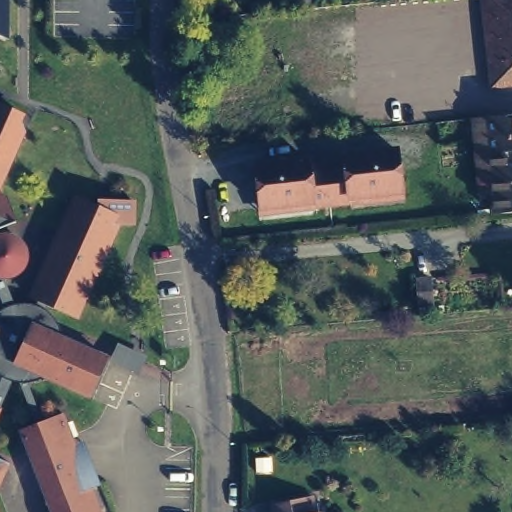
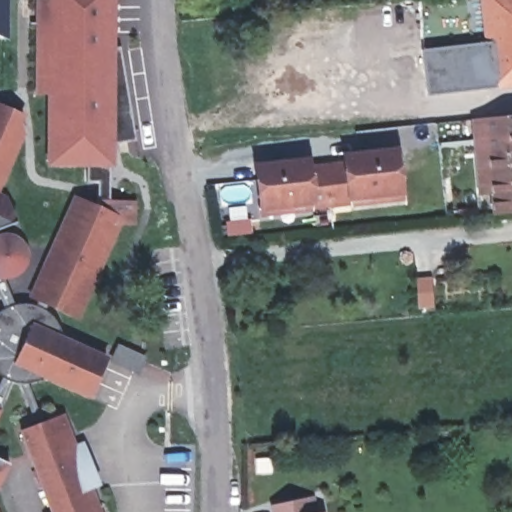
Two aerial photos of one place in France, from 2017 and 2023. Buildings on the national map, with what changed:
unchanged [(0,36),(0,0),(4,0),(3,38),(0,36)]
new [(115,168),(108,169),(110,202),(97,202),(97,180),(90,179),(88,166),(48,165),(47,94),(38,94),(35,0),(115,0),(115,49),(121,48),(136,138),(114,141),(115,168)]
unchanged [(481,92),(425,91),(421,47),(475,40),(470,0),(512,0),(512,88),(481,92)]
unchanged [(24,125),(27,133),(1,195),(7,192),(18,221),(0,228),(0,104),(27,115),(24,125)]
unchanged [(485,215),(483,195),(473,195),(467,119),(477,118),(512,115),(512,212),(485,215)]
unchanged [(315,157),(317,166),(347,162),(346,154),(405,147),(408,199),(262,216),(260,163),(315,157)]
unchanged [(92,202),(137,202),(138,225),(121,225),(81,320),(32,299),(77,196),(92,202)]
unchanged [(22,242),(28,251),(30,263),(25,272),(17,279),(5,281),(0,279),(0,236),(1,236),(12,237),(22,242)]
unchanged [(418,307),(415,280),(429,279),(431,306),(418,307)]
unchanged [(44,377),(33,382),(17,383),(4,379),(0,375),(0,314),(10,308),(24,304),(40,307),(51,315),(60,325),(63,335),(111,357),(94,398),(44,377)]
new [(118,343),(148,355),(140,375),(110,362),(118,343)]
unchanged [(0,418),(0,406),(3,410),(0,418)]
unchanged [(68,414),(77,446),(88,441),(107,486),(95,488),(104,512),(54,512),(22,430),(68,414)]
unchanged [(0,489),(0,454),(15,460),(0,489)]
unchanged [(268,502),(308,494),(312,511),(317,510),(318,512),(271,512),(268,502)]

